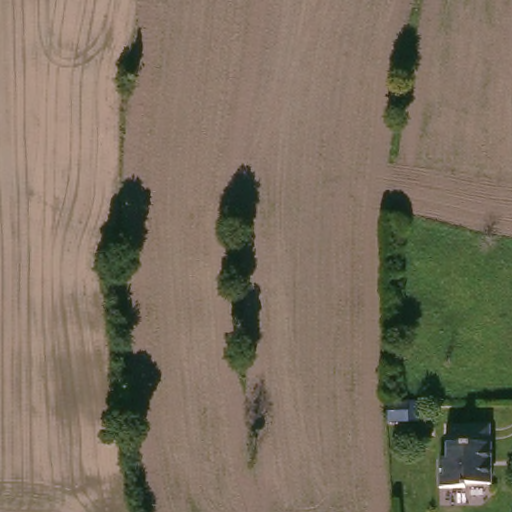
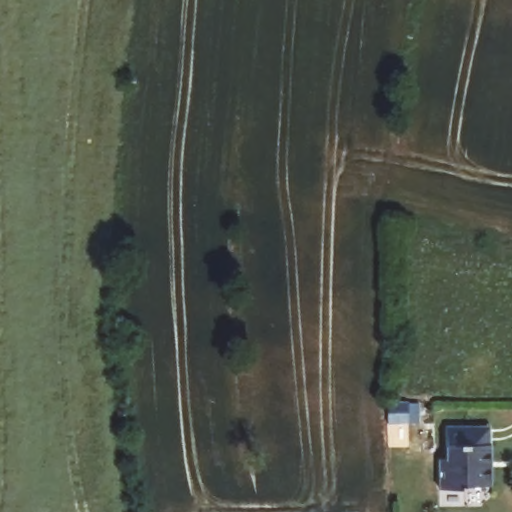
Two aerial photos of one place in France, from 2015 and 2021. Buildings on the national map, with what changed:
unchanged [(387,425),(385,403),(415,402),(416,425),(387,425)]
unchanged [(490,427),(489,445),(490,486),(465,486),(465,491),(435,491),(436,461),(444,461),(444,428),(460,428),(490,427)]

